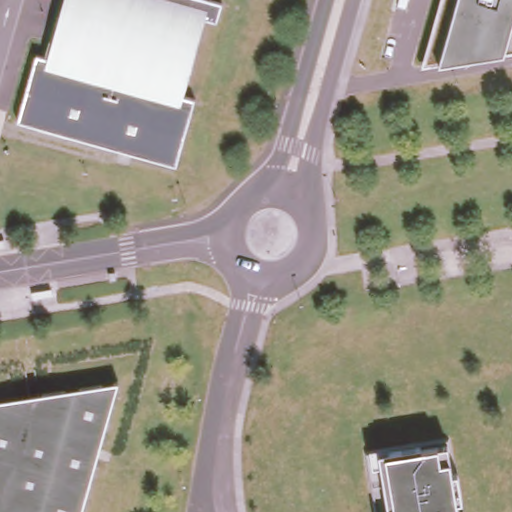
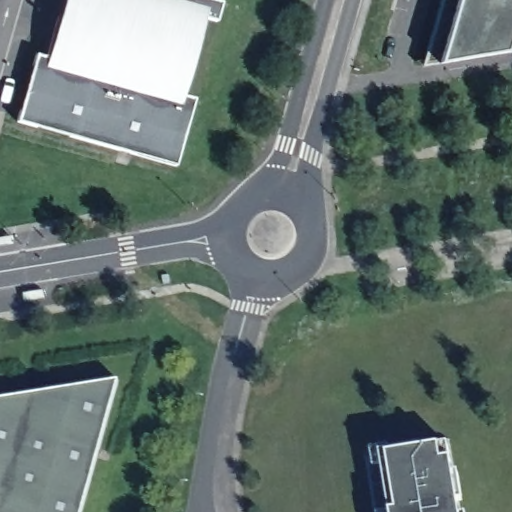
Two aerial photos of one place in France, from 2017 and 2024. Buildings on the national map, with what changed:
unchanged [(47,59),(62,0),(211,0),(222,3),(216,23),(204,20),(180,97),(194,100),(175,168),(15,124),(34,55),(47,59)]
unchanged [(443,0),(512,0),(512,56),(423,68),(443,0)]
unchanged [(116,382),(77,512),(0,512),(0,400),(116,382)]
unchanged [(376,465),(367,466),(364,448),(383,445),(384,450),(415,445),(416,448),(442,443),(446,472),(452,471),(456,500),(451,501),(453,512),(377,512),(383,511),(376,465)]

